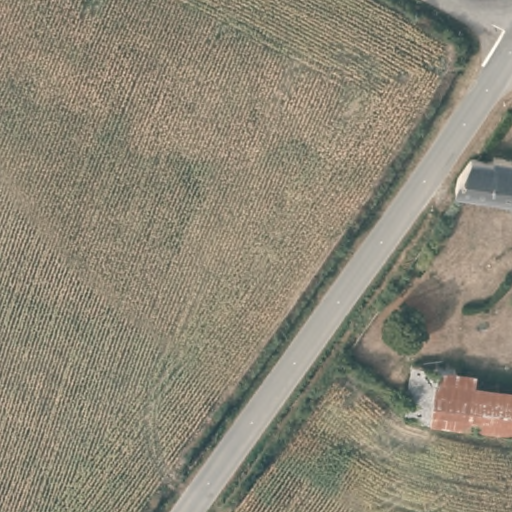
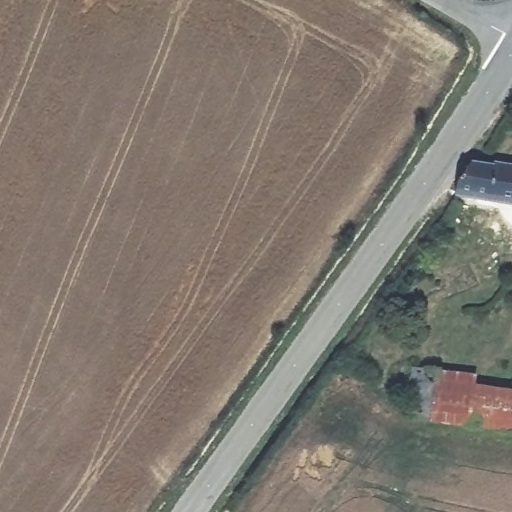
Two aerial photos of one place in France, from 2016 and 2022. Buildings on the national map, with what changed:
unchanged [(495,166),(498,162),(512,164),(512,203),(461,195),(461,183),(475,163),(495,166)]
unchanged [(407,362),(452,363),(451,373),(448,422),(405,417),(405,405),(407,362)]
unchanged [(448,422),(451,373),(512,378),(512,430),(448,422)]

